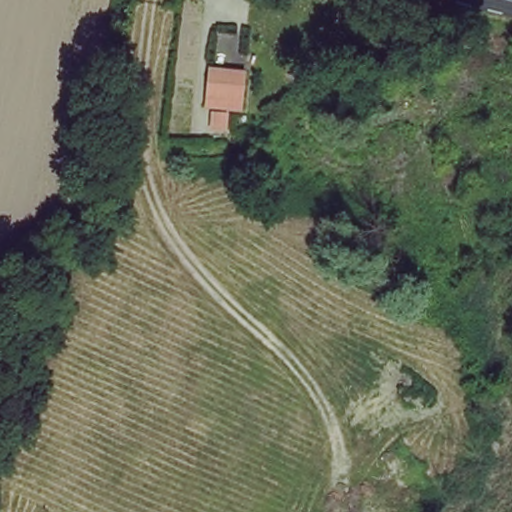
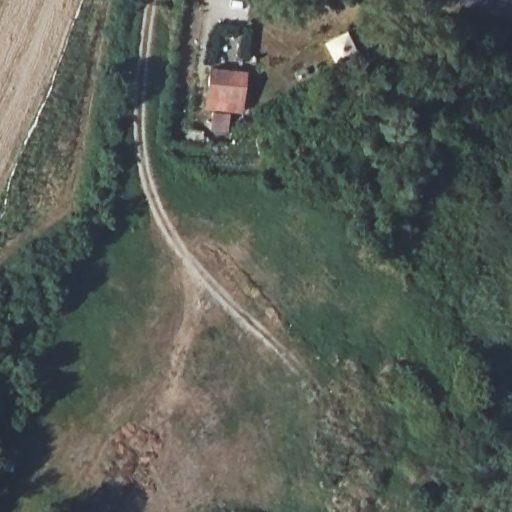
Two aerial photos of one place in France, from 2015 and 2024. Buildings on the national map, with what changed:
unchanged [(242,76),(240,101),(209,101),(209,75),(242,76)]

